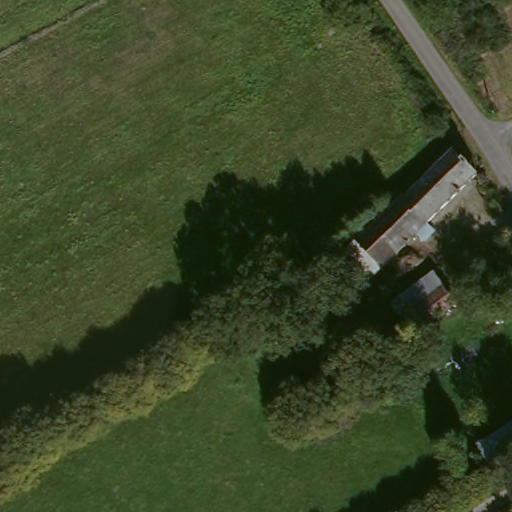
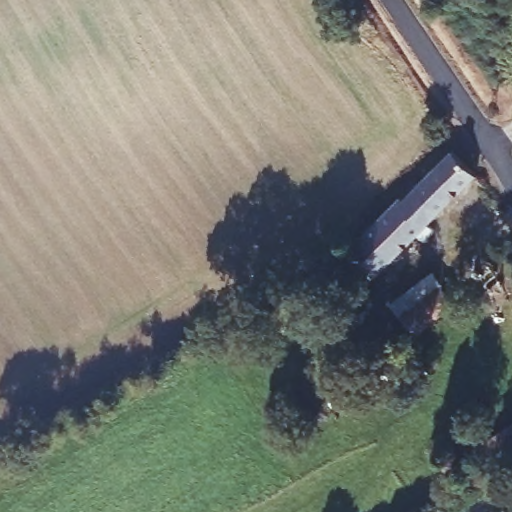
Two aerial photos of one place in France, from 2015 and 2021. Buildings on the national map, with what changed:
unchanged [(426,225),(431,233),(422,244),(414,236),(373,279),(344,254),(403,197),(406,200),(453,154),(474,176),(426,225)]
unchanged [(391,318),(431,285),(446,301),(406,335),(391,318)]
unchanged [(512,426),(512,462),(491,475),(473,450),(512,426)]

